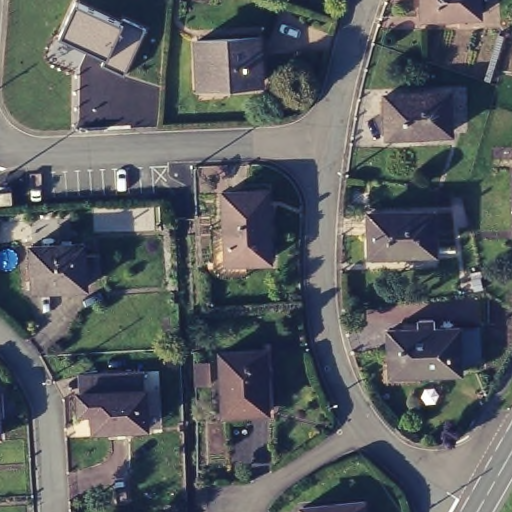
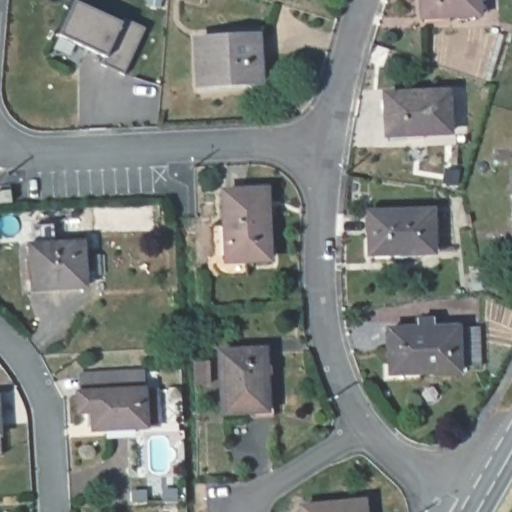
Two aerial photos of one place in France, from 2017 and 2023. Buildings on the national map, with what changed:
unchanged [(427,15),(426,0),(482,0),(482,11),(427,15)]
unchanged [(76,1),(118,21),(123,17),(145,28),(123,75),(102,65),(105,56),(61,35),(76,1)]
unchanged [(196,39),(258,35),(260,80),(198,83),(196,39)]
unchanged [(452,89),(453,129),(440,130),(422,130),(391,132),(390,91),(452,89)]
unchanged [(231,252),(230,217),(228,185),(270,184),(272,251),(250,253),(231,252)]
unchanged [(0,204),(0,191),(10,190),(11,203),(0,204)]
unchanged [(430,209),(432,248),(403,250),(405,255),(386,256),(385,250),(370,250),(368,210),(430,209)]
unchanged [(250,267),(228,268),(225,267),(222,265),(219,263),(217,260),(216,256),(215,254),(214,217),(230,217),(231,252),(250,253),(250,267)]
unchanged [(77,240),(77,252),(92,251),(93,270),(79,272),(79,283),(27,286),(25,242),(77,240)]
unchanged [(382,378),(382,362),(387,361),(387,327),(417,326),(417,317),(430,316),(431,325),(478,324),(479,363),(458,364),(457,369),(418,370),(418,377),(382,378)]
unchanged [(268,413),(244,415),(245,408),(217,410),(214,349),(258,346),(260,364),(265,363),(268,413)]
unchanged [(197,386),(196,366),(201,366),(207,365),(207,385),(202,386),(197,386)]
unchanged [(108,439),(107,431),(92,431),(91,414),(78,414),(77,396),(77,382),(90,381),(143,378),(143,391),(155,391),(157,428),(145,429),(130,430),(130,437),(108,439)]
unchanged [(2,432),(0,432),(0,402),(2,432)]
unchanged [(323,497),(305,500),(305,490),(321,487),(323,497)]
unchanged [(367,498),(368,512),(306,512),(305,505),(367,498)]

